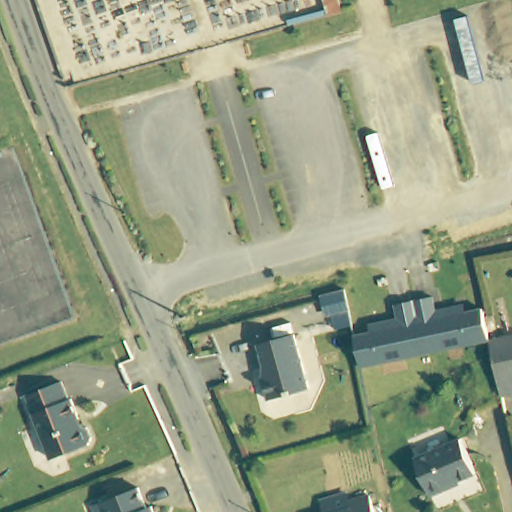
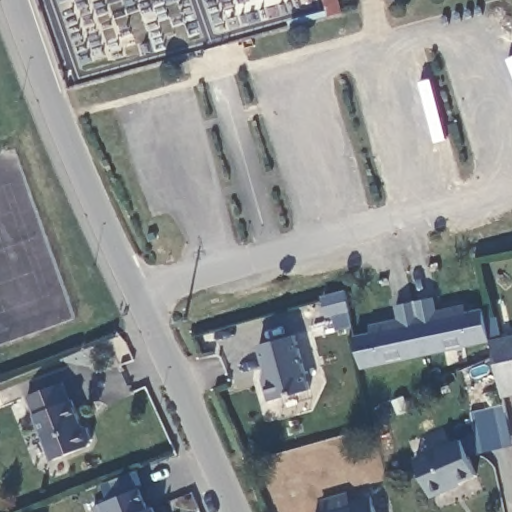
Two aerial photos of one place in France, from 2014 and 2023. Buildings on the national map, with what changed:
unchanged [(298,34),(297,23),(328,15),(325,1),(326,0),(336,0),(343,21),(298,34)]
unchanged [(354,335),(372,332),(370,325),(398,319),(396,305),(435,297),(438,310),(467,305),(470,312),(482,310),(489,342),(363,370),(354,335)]
unchanged [(311,393),(269,404),(264,383),(265,369),(258,348),(295,339),(311,393)]
unchanged [(496,359),(493,345),(512,341),(512,399),(504,400),(496,359)]
unchanged [(27,396),(62,383),(89,446),(52,461),(27,396)]
new [(512,444),(460,460),(455,446),(453,442),(475,435),(470,413),(479,410),(483,403),(500,398),(512,440),(512,444)]
unchanged [(469,482),(443,492),(442,495),(425,503),(409,465),(455,446),(469,482)]
unchanged [(92,507),(138,489),(146,507),(152,506),(155,512),(94,512),(92,507)]
unchanged [(349,504),(369,498),(373,512),(351,512),(349,504)]

